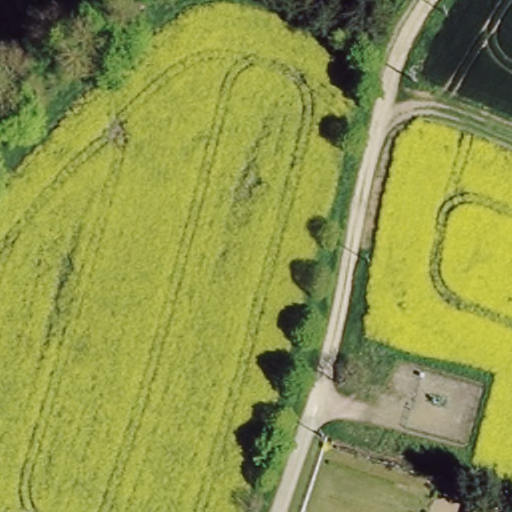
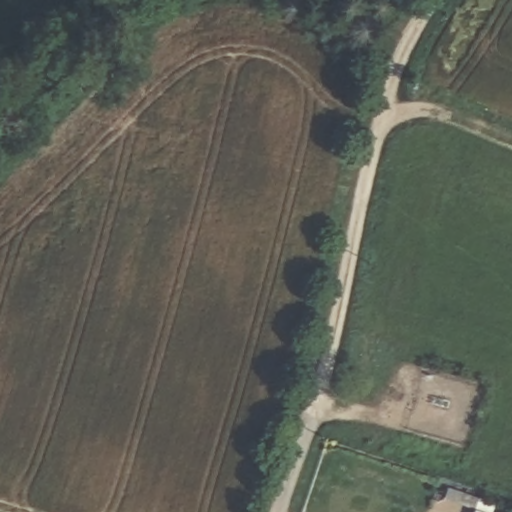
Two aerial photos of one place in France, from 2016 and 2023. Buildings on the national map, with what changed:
[]

